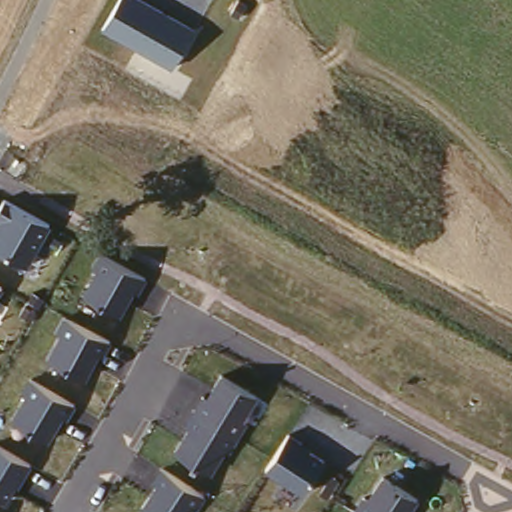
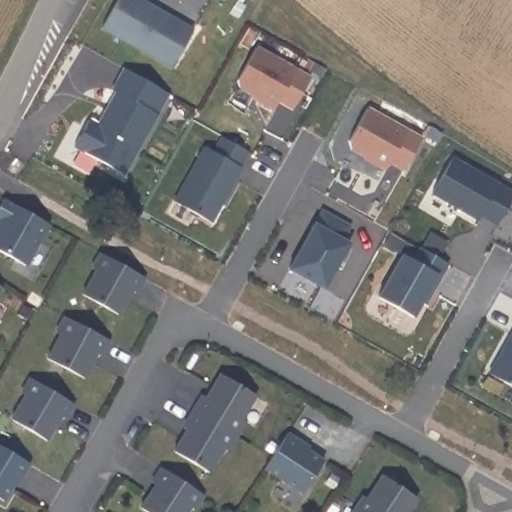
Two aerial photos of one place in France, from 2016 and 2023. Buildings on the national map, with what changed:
unchanged [(198,30),(174,69),(100,27),(117,0),(146,0),(198,30)]
new [(311,75),(295,105),(283,97),(277,105),(258,96),(259,93),(240,81),(258,45),(311,75)]
new [(166,89),(153,110),(159,112),(127,169),(78,142),(91,116),(100,120),(117,90),(115,86),(127,66),(166,89)]
new [(423,137),(405,166),(391,158),(386,165),(369,157),(372,154),(350,141),(371,106),(423,137)]
new [(175,197),(207,145),(215,150),(225,134),(249,147),(240,161),(245,164),(213,218),(175,197)]
new [(512,207),(502,224),(486,215),(484,219),(438,194),(457,158),(512,190),(512,207)]
unchanged [(52,226),(29,266),(0,250),(0,219),(0,218),(0,202),(4,196),(52,226)]
new [(292,267),(324,207),(351,222),(343,235),(352,241),(345,252),(349,255),(329,289),(292,267)]
new [(380,292),(403,252),(415,257),(423,244),(450,260),(433,289),(431,287),(415,313),(380,292)]
unchanged [(146,276),(136,293),(132,292),(119,314),(81,295),(96,267),(90,263),(99,250),(146,276)]
unchanged [(4,289),(0,295),(0,286),(4,289)]
unchanged [(110,338),(103,352),(99,351),(86,377),(47,357),(61,331),(55,327),(63,312),(110,338)]
new [(512,341),(512,382),(495,372),(512,341)]
unchanged [(74,402),(66,417),(62,415),(48,438),(11,418),(26,393),(22,390),(31,374),(74,402)]
unchanged [(259,396),(246,418),(249,420),(229,450),(226,448),(213,472),(174,451),(189,427),(184,423),(202,392),(207,396),(220,375),(259,396)]
unchanged [(329,457),(306,496),(263,469),(286,432),(329,457)]
unchanged [(30,463),(6,500),(0,496),(0,444),(30,463)]
unchanged [(197,510),(191,506),(187,512),(148,512),(140,507),(157,482),(151,479),(161,465),(207,493),(197,510)]
unchanged [(411,512),(349,512),(362,493),(368,497),(383,472),(420,497),(411,512)]

